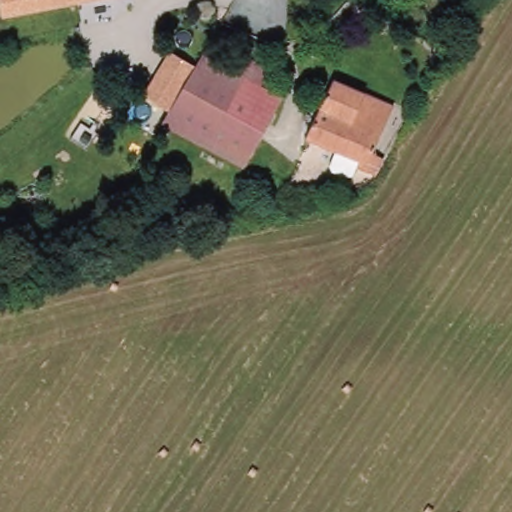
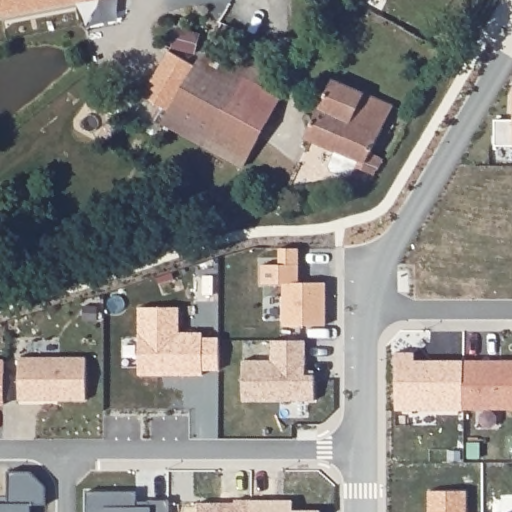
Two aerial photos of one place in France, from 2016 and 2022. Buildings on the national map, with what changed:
unchanged [(99,0),(0,22),(0,0),(99,0)]
unchanged [(171,109),(145,93),(171,47),(198,63),(171,109)]
unchanged [(245,166),(165,120),(171,109),(198,63),(204,52),(236,71),(243,59),(252,65),(270,75),(262,86),(284,99),(245,166)]
unchanged [(372,163),(308,139),(330,80),(393,104),(372,163)]
new [(512,120),(512,146),(495,146),(495,120),(512,120)]
new [(279,263),(278,249),(298,248),(299,281),(325,282),(325,327),(283,327),(282,284),(260,284),(260,265),(279,263)]
new [(178,307),(179,332),(204,333),(204,338),(219,337),(220,371),(204,372),(205,376),(140,378),(139,308),(178,307)]
new [(271,359),(271,341),(306,340),(305,370),(314,376),(315,399),(244,401),(243,359),(271,359)]
new [(415,352),(415,359),(512,360),(512,409),(395,410),(396,352),(415,352)]
new [(85,356),(85,400),(19,401),(19,357),(85,356)]
new [(4,405),(0,405),(0,360),(4,360),(4,405)]
new [(136,493),(136,506),(147,505),(147,503),(166,502),(167,512),(86,512),(85,492),(136,493)]
new [(236,502),(236,499),(295,500),(295,510),(321,510),(321,512),(199,512),(200,503),(236,502)]

